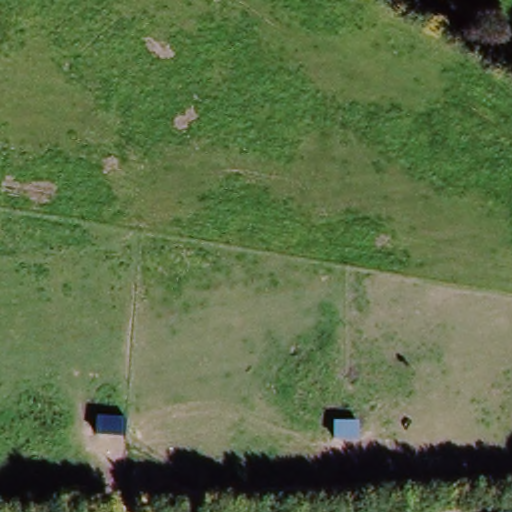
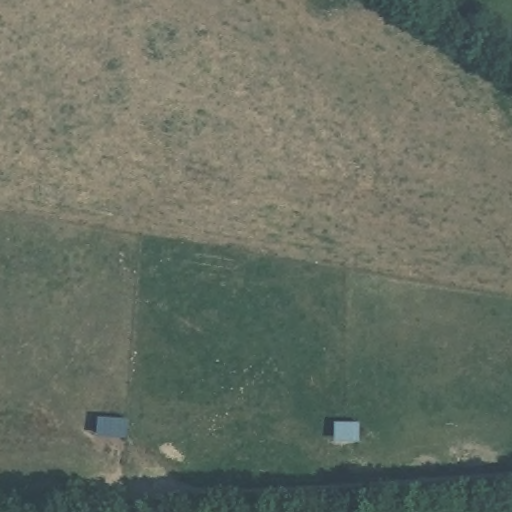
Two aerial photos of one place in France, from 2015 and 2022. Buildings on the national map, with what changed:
[]

